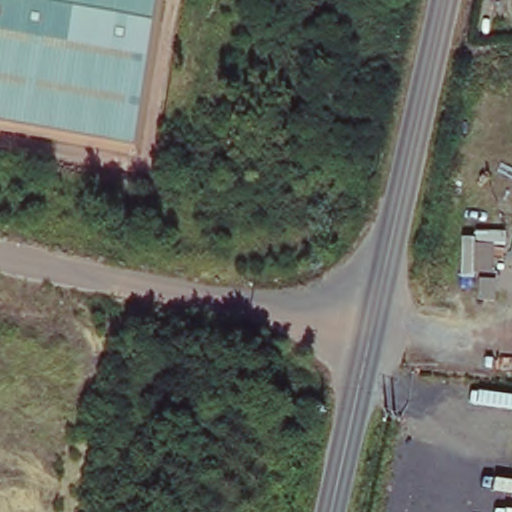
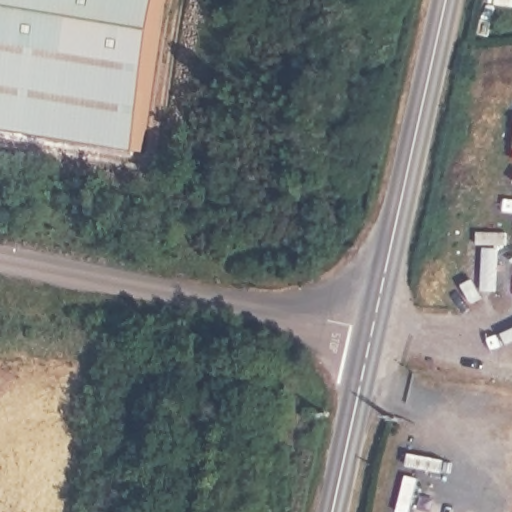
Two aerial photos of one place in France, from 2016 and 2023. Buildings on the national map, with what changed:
unchanged [(0,128),(0,0),(159,0),(134,150),(0,128)]

